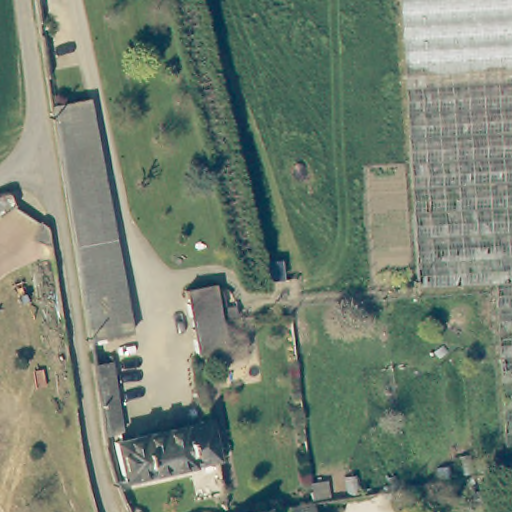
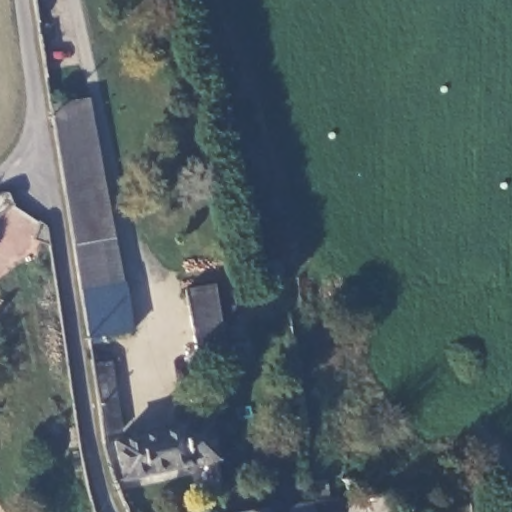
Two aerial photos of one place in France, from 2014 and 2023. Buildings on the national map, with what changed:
demolished [(505,435),(495,287),(419,294),(399,0),(512,0),(512,434),(505,435)]
unchanged [(49,102),(84,95),(109,231),(70,239),(49,102)]
unchanged [(15,210),(0,216),(0,199),(8,196),(15,210)]
unchanged [(70,239),(109,231),(128,327),(86,337),(70,239)]
unchanged [(217,291),(227,354),(201,359),(197,359),(186,294),(217,291)]
unchanged [(89,370),(99,368),(99,360),(108,359),(118,423),(114,436),(100,437),(89,370)]
unchanged [(215,455),(120,474),(114,439),(209,419),(215,455)]
unchanged [(335,501),(337,512),(291,512),(290,509),(335,501)]

